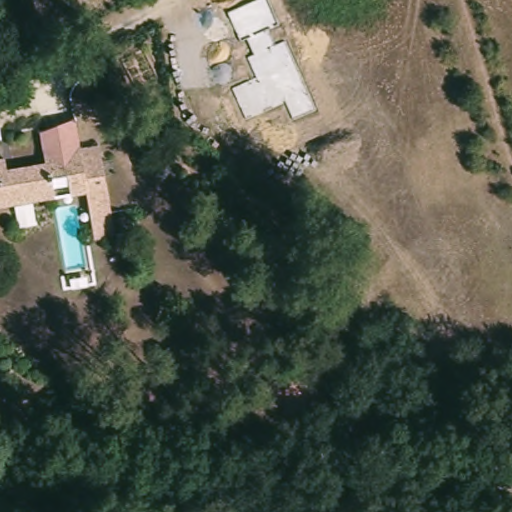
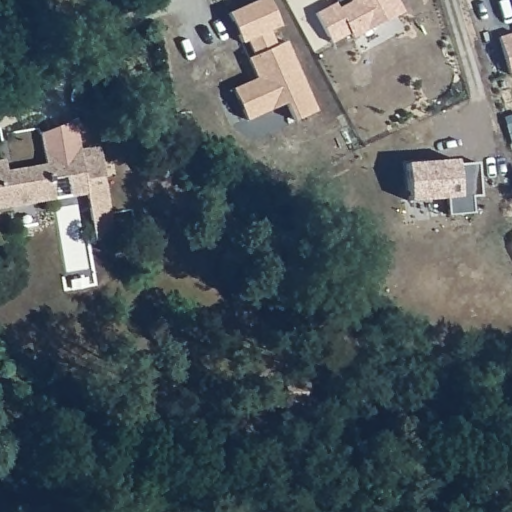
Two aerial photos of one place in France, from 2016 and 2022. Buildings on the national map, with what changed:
new [(264,0),(265,0),(278,29),(268,34),(275,49),(285,45),(317,114),(295,124),(286,106),(247,125),(233,94),(257,82),(247,62),(254,60),(246,44),(240,47),(226,17),(264,0)]
new [(333,4),(336,9),(352,0),(396,0),(402,11),(351,39),(348,33),(330,44),(314,14),(333,4)]
new [(512,71),(509,72),(498,35),(512,31),(512,71)]
unchanged [(4,160),(6,172),(45,165),(40,134),(58,127),(71,122),(75,121),(80,151),(100,147),(108,194),(111,214),(112,220),(115,237),(108,239),(102,240),(91,241),(84,200),(82,182),(0,207),(0,161),(4,160)]
new [(458,160),(459,165),(462,197),(411,202),(407,165),(432,162),(458,160)]

